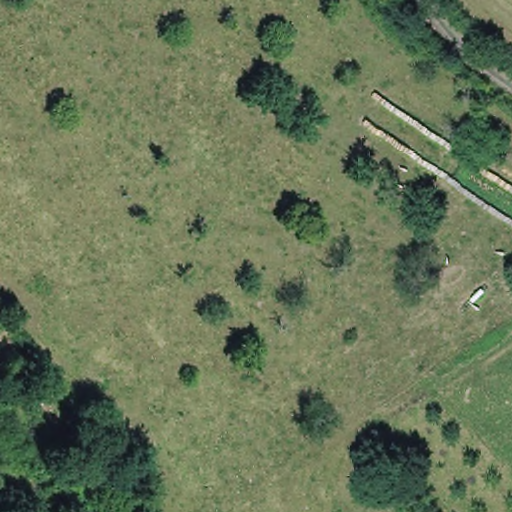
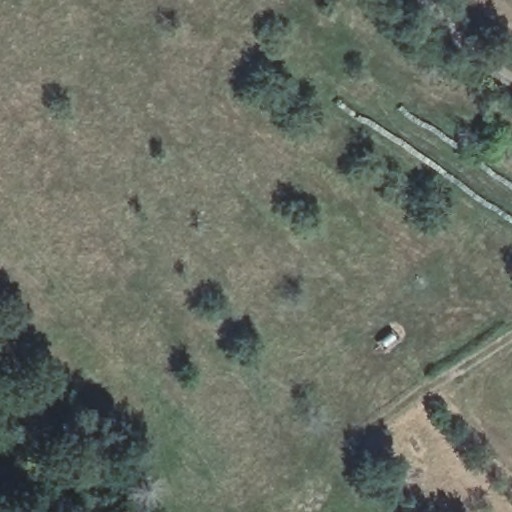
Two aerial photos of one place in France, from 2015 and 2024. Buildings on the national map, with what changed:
[]

